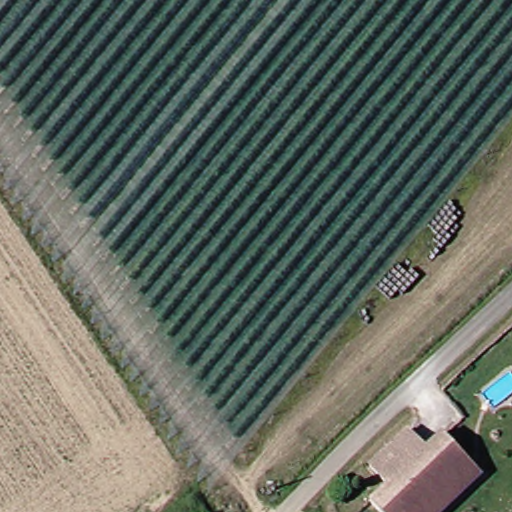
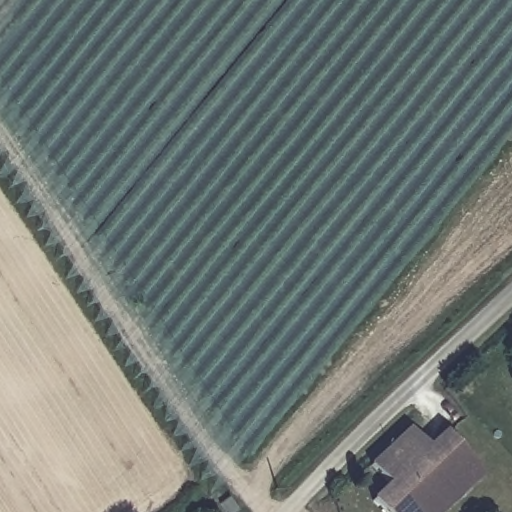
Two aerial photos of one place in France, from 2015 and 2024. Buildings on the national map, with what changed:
unchanged [(408,512),(387,512),(378,502),(396,485),(377,465),(398,446),(417,427),(434,447),(450,432),(466,450),(404,508),(408,512)]
unchanged [(487,472),(447,512),(408,512),(404,508),(466,450),(487,472)]

